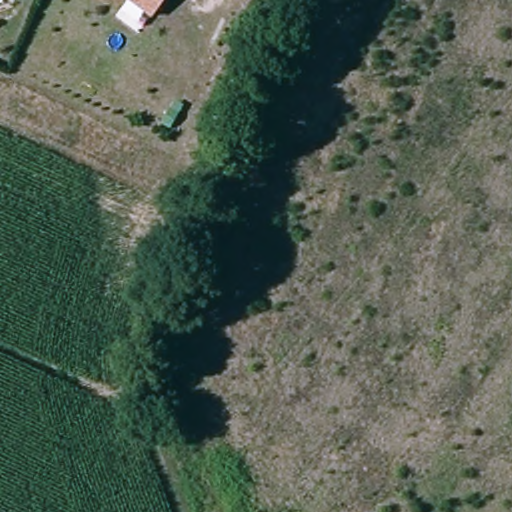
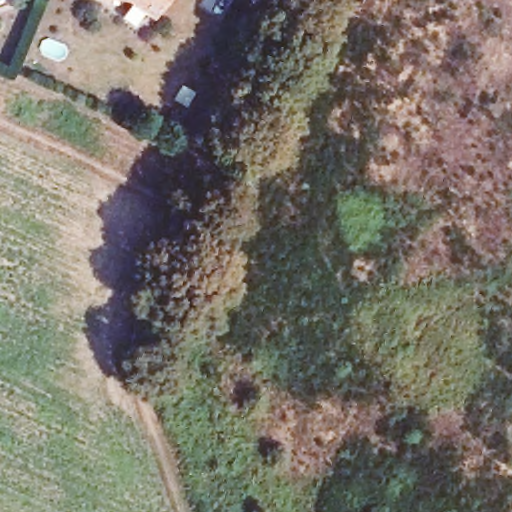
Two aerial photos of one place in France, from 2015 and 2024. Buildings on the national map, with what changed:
unchanged [(132,0),(163,0),(153,14),(132,0)]

